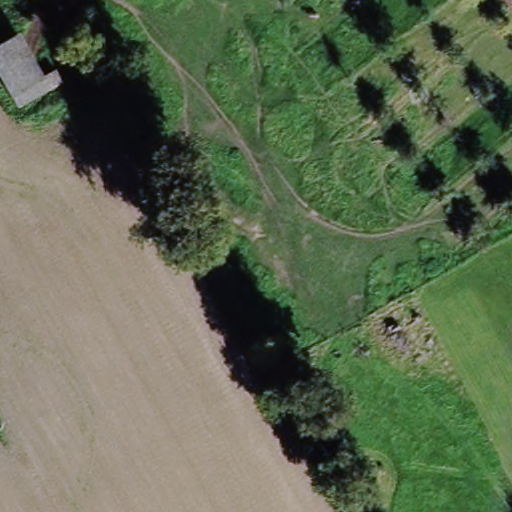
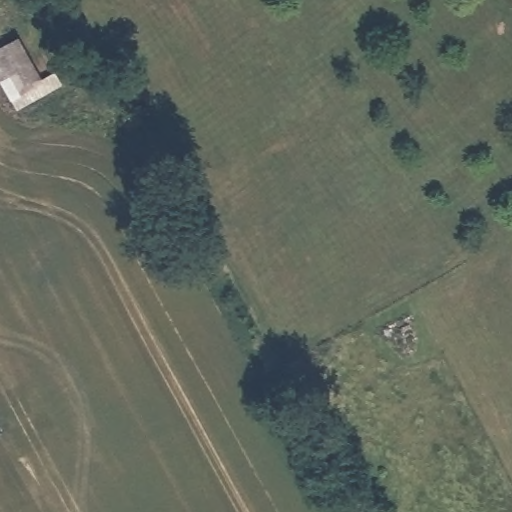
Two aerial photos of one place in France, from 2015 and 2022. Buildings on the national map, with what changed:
unchanged [(43,75),(55,70),(64,85),(14,115),(0,88),(0,47),(17,37),(43,75)]

